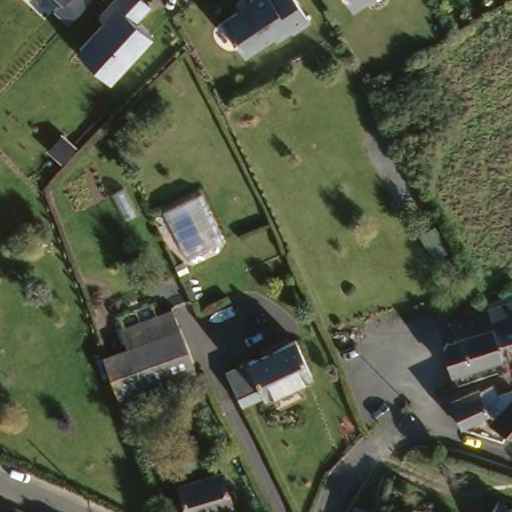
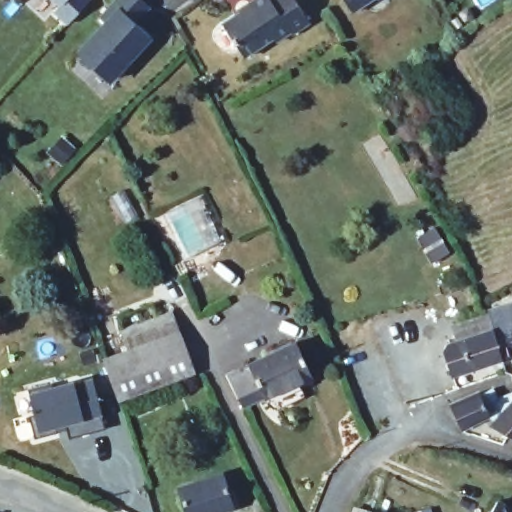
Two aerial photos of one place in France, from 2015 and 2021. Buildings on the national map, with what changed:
unchanged [(51,11),(58,4),(54,0),(90,0),(68,27),(51,11)]
unchanged [(110,85),(76,53),(104,22),(98,17),(115,0),(143,0),(150,6),(137,20),(152,38),(110,85)]
unchanged [(287,33),(286,31),(271,41),(268,36),(239,56),(217,22),(246,3),(245,1),(247,0),(291,0),(305,21),(301,24),(287,33)]
unchanged [(338,0),(359,0),(344,9),(338,0)]
unchanged [(512,301),(512,354),(503,356),(487,310),(512,301)]
unchanged [(503,356),(452,372),(443,344),(460,338),(454,322),(487,310),(503,356)]
unchanged [(147,345),(108,360),(102,343),(180,313),(186,329),(147,345)]
unchanged [(201,369),(123,400),(108,360),(147,345),(186,329),(201,369)]
unchanged [(298,340),(317,375),(250,409),(232,375),(298,340)]
new [(54,385),(54,389),(75,384),(76,386),(95,381),(107,432),(70,441),(65,423),(56,425),(59,435),(35,441),(29,418),(35,416),(29,391),(54,385)]
unchanged [(495,420),(490,417),(466,426),(456,402),(459,400),(498,386),(506,397),(512,393),(512,433),(491,426),(495,420)]
unchanged [(227,476),(235,507),(215,512),(192,512),(185,486),(227,476)]
unchanged [(512,504),(512,512),(499,512),(506,500),(512,504)]

